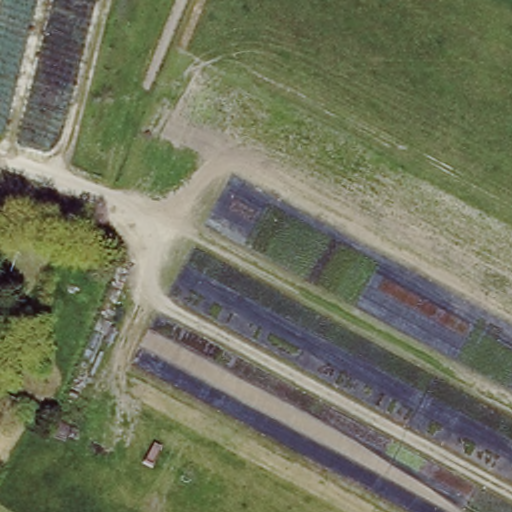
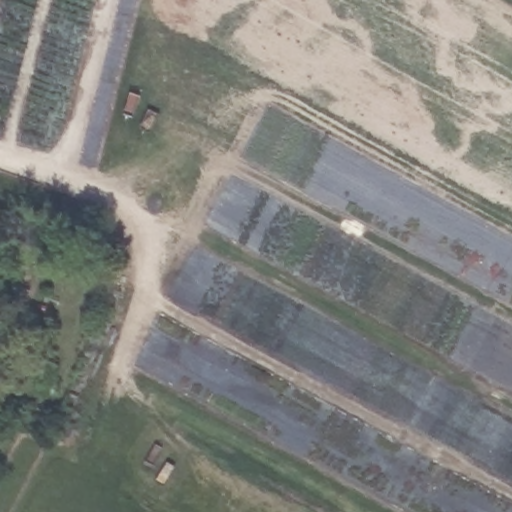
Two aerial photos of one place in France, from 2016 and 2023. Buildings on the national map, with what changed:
[]

